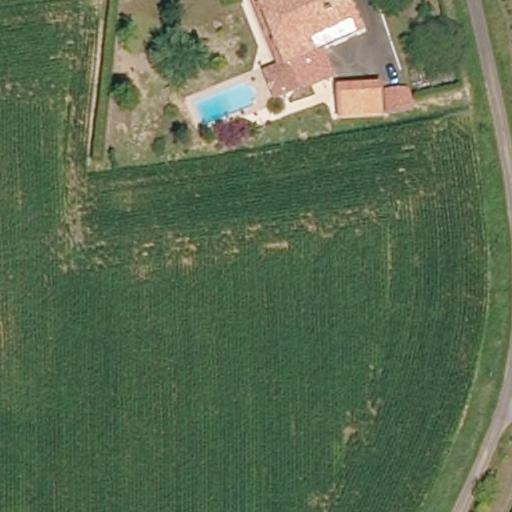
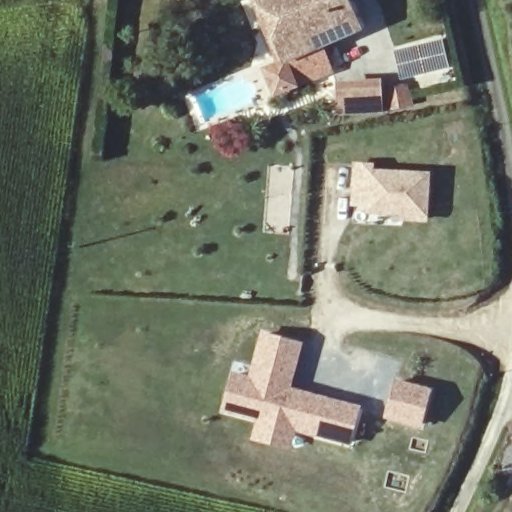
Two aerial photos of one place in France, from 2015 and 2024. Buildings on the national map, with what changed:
unchanged [(332,78),(296,91),(261,0),(347,0),(361,36),(322,51),(332,78)]
unchanged [(339,116),(339,83),(386,81),(386,88),(411,86),(414,110),(339,116)]
new [(376,163),(376,169),(432,172),(431,222),(404,222),(404,216),(367,216),(367,206),(353,206),(355,163),(376,163)]
new [(304,344),(293,387),(363,406),(353,446),(297,432),(291,451),(252,441),(258,420),(222,412),(233,370),(250,375),(262,332),(304,344)]
new [(433,388),(423,429),(386,419),(396,379),(433,388)]

